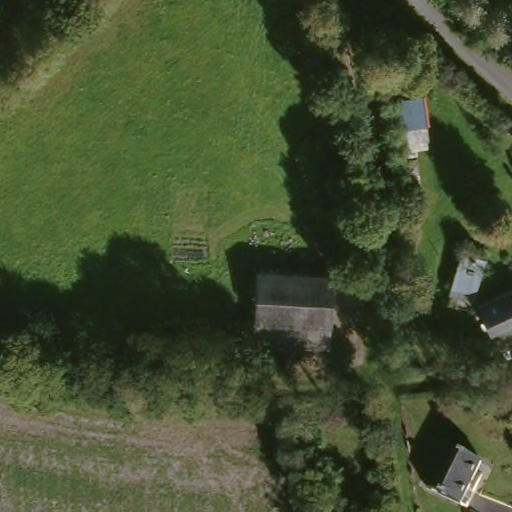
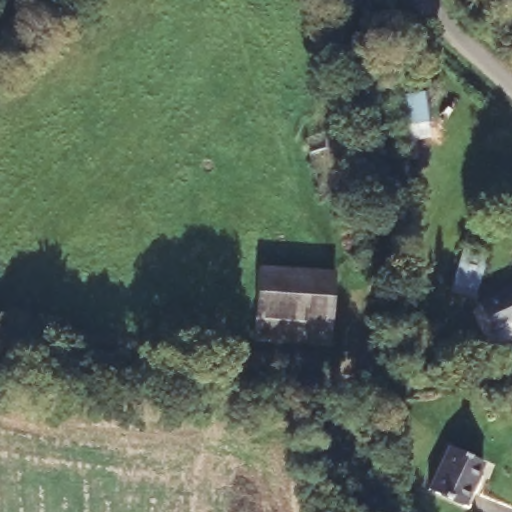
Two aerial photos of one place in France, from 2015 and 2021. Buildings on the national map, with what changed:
unchanged [(426,78),(432,143),(401,146),(395,83),(426,78)]
unchanged [(475,297),(443,291),(445,287),(450,256),(482,261),(476,293),(475,297)]
unchanged [(255,314),(260,265),(333,273),(329,321),(255,314)]
unchanged [(473,313),(512,292),(512,329),(488,342),(473,313)]
unchanged [(327,344),(253,338),(255,314),(329,321),(327,344)]
unchanged [(475,488),(466,512),(461,512),(421,496),(437,455),(473,468),(466,485),(475,488)]

